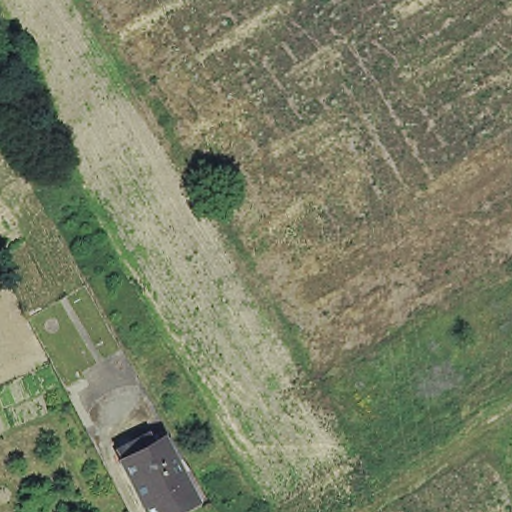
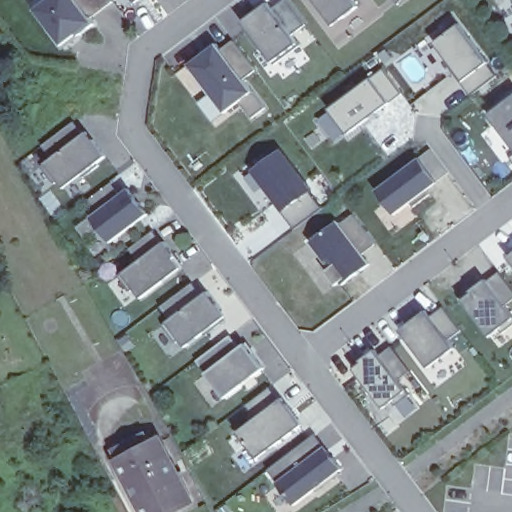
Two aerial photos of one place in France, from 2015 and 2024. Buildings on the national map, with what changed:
new [(49,0),(112,0),(114,3),(92,20),(96,25),(80,36),(81,37),(80,38),(78,35),(65,45),(58,37),(56,39),(35,10),(49,0)]
new [(136,1),(136,0),(138,0),(136,1)]
new [(275,64),(242,22),(268,2),(273,7),(283,0),(287,0),(306,25),(292,36),(300,45),(275,64)]
new [(333,25),(315,0),(353,0),(358,6),(333,25)]
new [(400,3),(397,0),(402,0),(400,3)]
new [(497,78),(470,99),(429,46),(460,24),(497,78)]
new [(202,53),(216,43),(218,44),(222,51),(235,41),(257,71),(245,81),(267,109),(253,120),(241,103),(226,114),(190,66),(204,55),(202,53)]
new [(399,95),(342,136),(325,112),(383,68),(399,95)]
new [(512,100),(512,145),(490,116),(512,100)]
new [(65,192),(43,163),(50,157),(41,145),(76,120),(85,130),(91,127),(113,155),(65,192)]
new [(296,230),(250,171),(278,148),(315,192),(312,194),(324,208),(296,230)]
new [(420,159),(439,184),(428,192),(431,196),(415,208),(412,204),(396,216),(378,191),(420,159)]
new [(110,243),(90,218),(129,189),(148,213),(110,243)]
new [(339,222),(341,225),(355,216),(377,245),(364,255),(372,265),(344,286),(342,283),(338,286),(327,272),(331,269),(311,243),(339,222)]
new [(140,297),(122,273),(138,261),(130,250),(155,232),(165,244),(182,266),(140,297)]
demolished [(52,291),(23,306),(3,264),(30,251),(52,291)]
new [(510,258),(512,257),(512,261),(510,258)]
demolished [(0,273),(1,275),(0,276),(0,273)]
new [(474,294),(471,291),(472,290),(473,291),(487,280),(488,282),(501,273),(512,288),(512,303),(507,306),(512,313),(512,328),(504,334),(501,330),(491,337),(470,309),(471,307),(466,300),(474,294)]
new [(204,296),(210,292),(222,310),(228,317),(224,320),(225,323),(207,336),(205,335),(187,348),(181,341),(177,344),(165,326),(171,321),(161,308),(194,284),(204,296)]
new [(463,332),(450,341),(456,349),(430,369),(401,331),(427,311),(432,317),(445,308),(463,332)]
new [(225,397),(207,372),(200,361),(232,336),(241,348),(246,343),(265,367),(225,397)]
new [(363,363),(361,361),(362,360),(363,361),(376,350),(381,356),(393,347),(411,372),(400,381),(411,396),(396,407),(393,403),(385,409),(361,377),(363,376),(357,368),(363,363)]
new [(303,427),(254,463),(234,434),(281,399),(303,427)]
unchanged [(137,498),(121,466),(117,459),(120,457),(115,446),(144,430),(150,442),(160,437),(192,499),(174,508),(176,512),(141,512),(134,499),(137,498)]
new [(326,447),(343,468),(295,506),(276,482),(268,470),(315,434),(326,447)]

